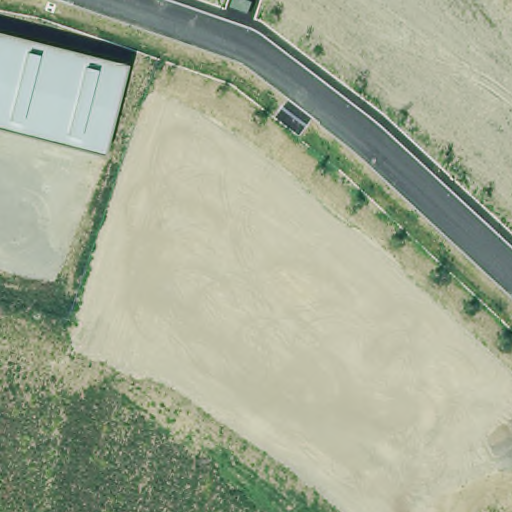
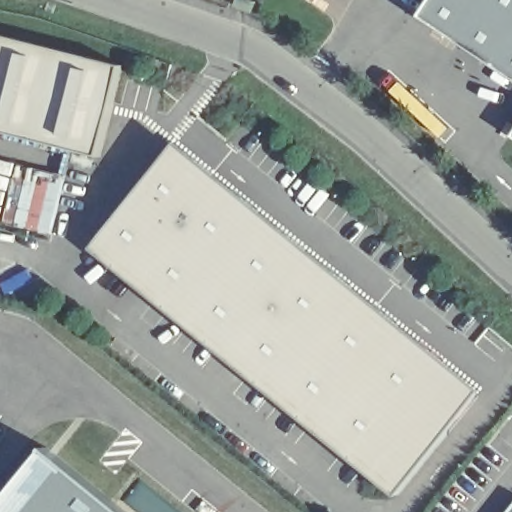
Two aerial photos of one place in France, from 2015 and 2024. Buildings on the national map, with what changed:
new [(432,0),(512,0),(512,77),(422,16),(432,0)]
unchanged [(123,65),(100,155),(0,129),(0,35),(123,65)]
new [(398,492),(93,245),(171,148),(477,396),(398,492)]
new [(34,450),(111,512),(0,512),(0,494),(34,450)]
new [(512,504),(512,512),(506,512),(512,504)]

